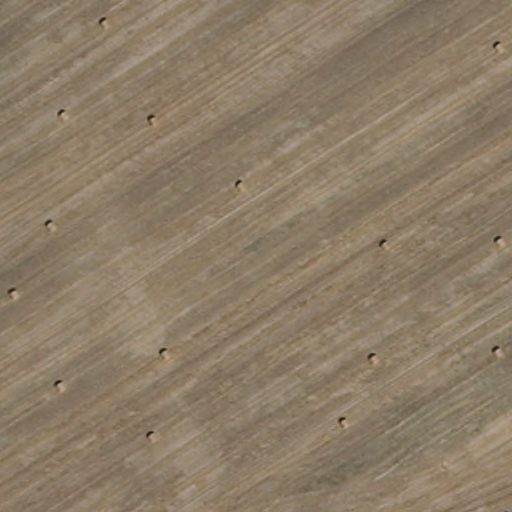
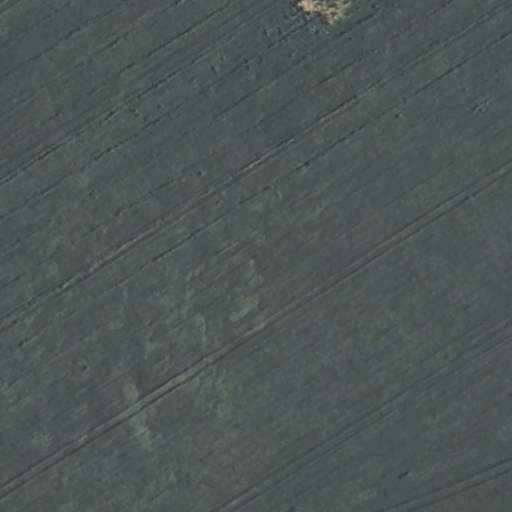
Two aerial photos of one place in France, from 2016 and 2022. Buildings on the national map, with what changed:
[]

